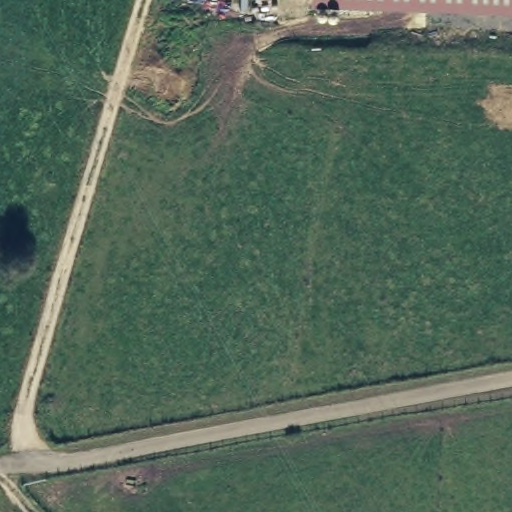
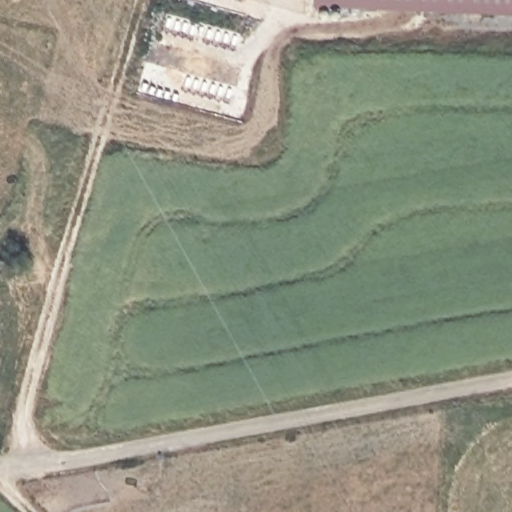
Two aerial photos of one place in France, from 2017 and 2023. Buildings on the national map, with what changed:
unchanged [(313,0),(512,0),(512,14),(313,6),(313,0)]

